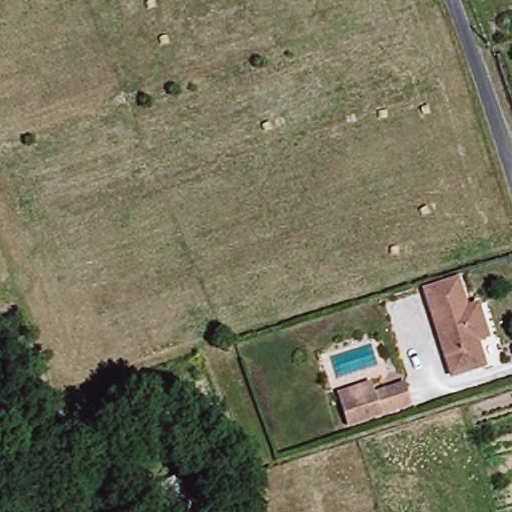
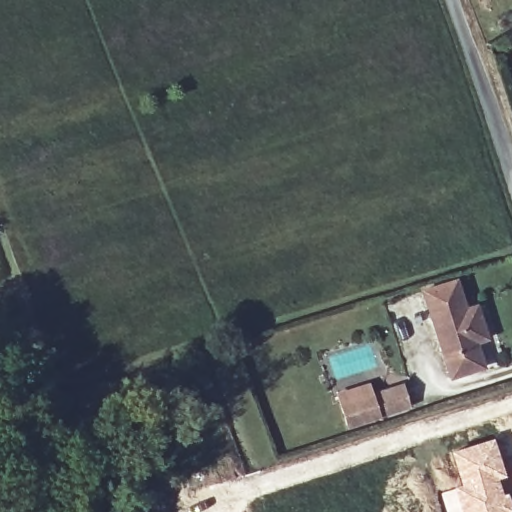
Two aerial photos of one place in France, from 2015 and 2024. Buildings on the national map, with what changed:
unchanged [(453,282),(463,314),(478,309),(488,340),(474,344),(482,371),(449,380),(422,291),(453,282)]
unchanged [(414,407),(353,426),(345,399),(342,389),(377,379),(380,389),(406,381),(414,407)]
new [(450,451),(494,436),(508,477),(501,479),(510,512),(446,512),(441,492),(456,487),(461,485),(450,451)]

